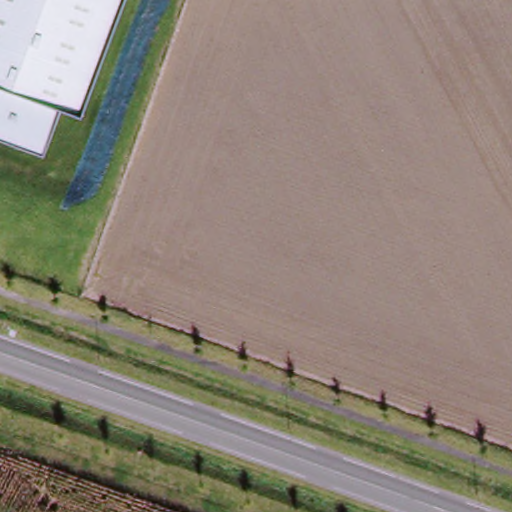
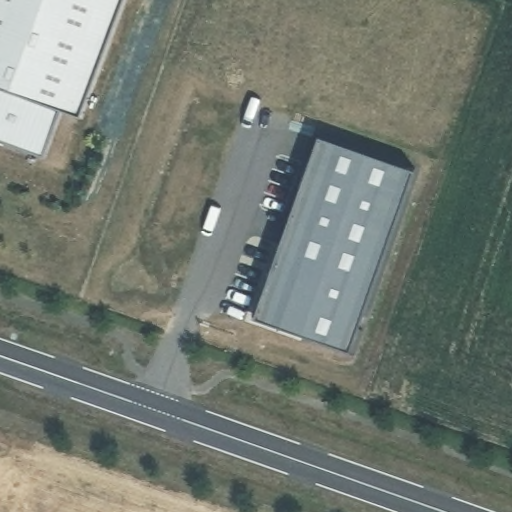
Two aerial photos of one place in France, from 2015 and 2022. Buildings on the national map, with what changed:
unchanged [(123,0),(81,117),(59,110),(43,157),(0,140),(0,0),(123,0)]
new [(415,169),(350,350),(255,316),(320,135),(415,169)]

